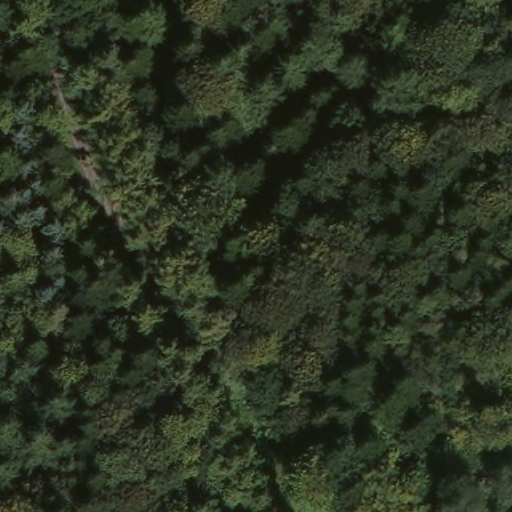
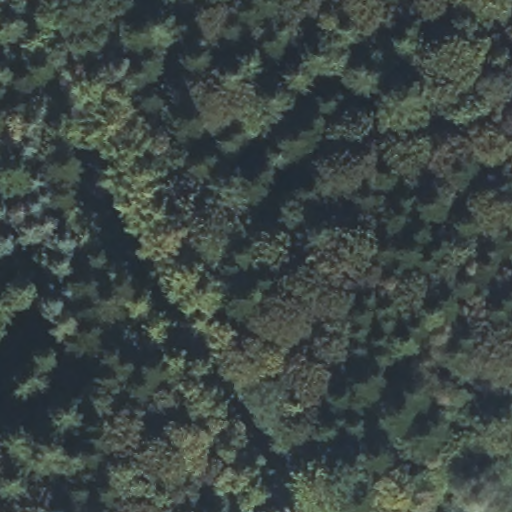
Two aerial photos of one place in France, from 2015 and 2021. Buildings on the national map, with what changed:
[]

